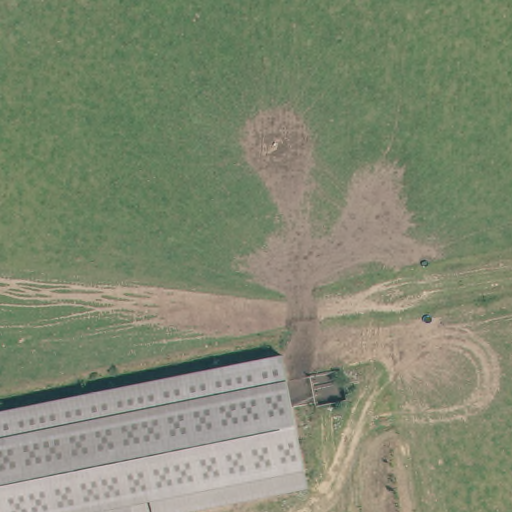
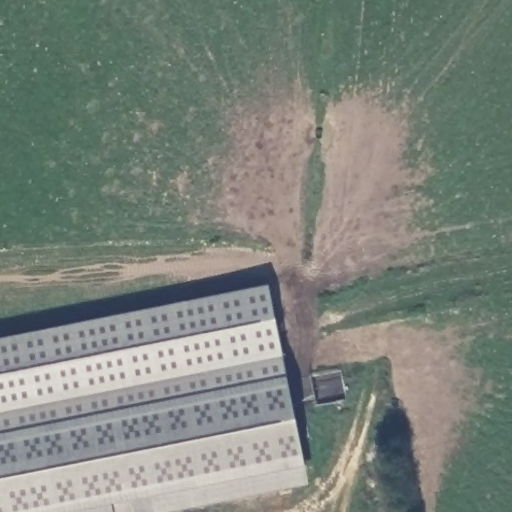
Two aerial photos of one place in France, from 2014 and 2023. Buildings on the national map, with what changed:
new [(0,412),(0,341),(269,288),(283,355),(0,412)]
unchanged [(283,355),(287,380),(304,469),(309,488),(189,512),(0,512),(0,412),(283,355)]

